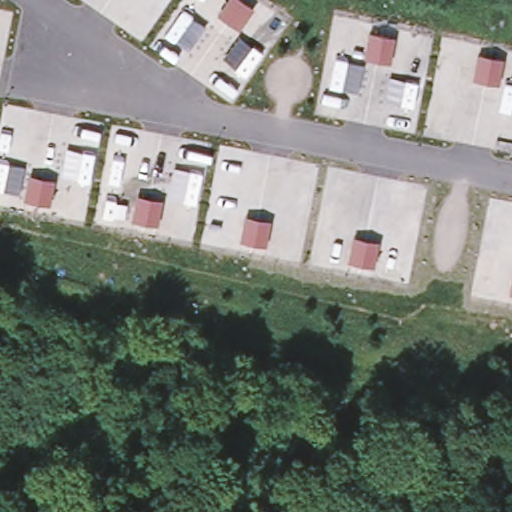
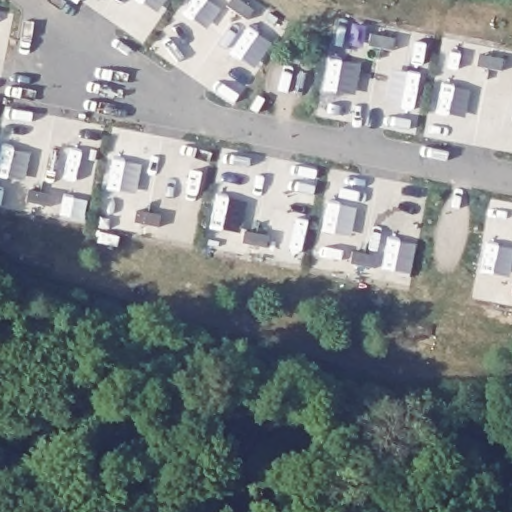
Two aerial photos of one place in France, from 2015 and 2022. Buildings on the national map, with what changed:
unchanged [(257,8),(240,32),(216,15),(227,0),(244,0),(257,8)]
unchanged [(397,37),(392,64),(365,59),(369,32),(397,37)]
unchanged [(505,57),(500,83),(472,79),(477,52),(505,57)]
unchanged [(56,180),(50,207),(25,202),(30,176),(56,180)]
unchanged [(163,201),(158,227),(130,222),(136,196),(163,201)]
unchanged [(272,222),(266,250),(238,244),(245,217),(272,222)]
unchanged [(381,242),(375,270),(347,263),(353,237),(381,242)]
unchanged [(512,276),(512,296),(508,295),(512,276)]

